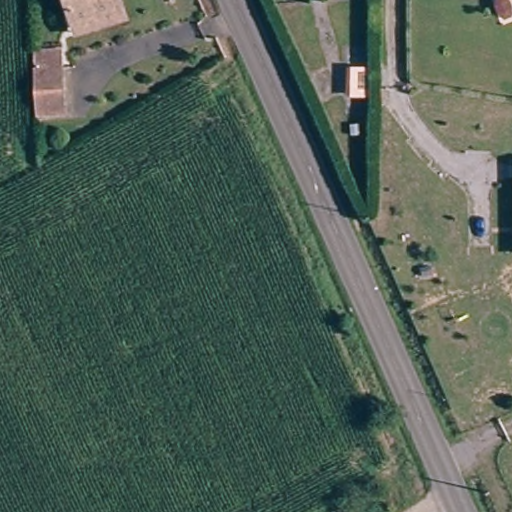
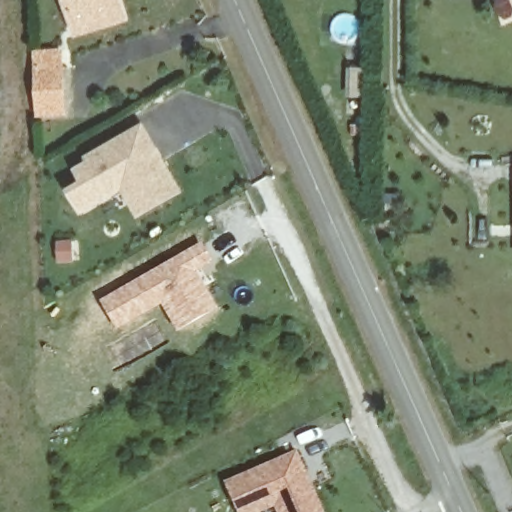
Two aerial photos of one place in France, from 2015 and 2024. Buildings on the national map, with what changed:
unchanged [(80,24),(72,0),(120,0),(123,9),(126,19),(83,34),(80,24)]
unchanged [(62,103),(37,104),(35,61),(60,60),(62,103)]
new [(183,192),(138,219),(122,191),(80,214),(67,190),(80,182),(74,169),(86,161),(83,156),(143,123),(183,192)]
new [(200,243),(213,264),(199,273),(217,311),(177,333),(160,305),(116,331),(98,300),(200,243)]
new [(325,512),(279,512),(277,508),(267,512),(241,512),(227,482),(296,452),(325,512)]

